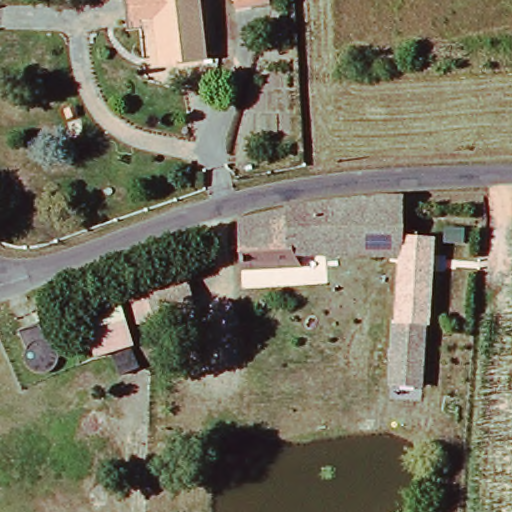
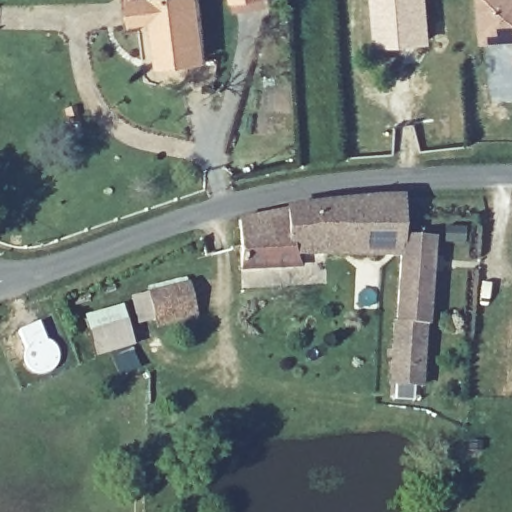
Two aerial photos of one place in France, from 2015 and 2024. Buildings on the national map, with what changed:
unchanged [(141,20),(139,0),(202,0),(207,60),(164,64),(161,19),(141,20)]
new [(427,39),(378,42),(375,0),(425,0),(427,39)]
new [(483,43),(480,0),(512,0),(512,41),(483,43)]
unchanged [(292,207),(407,194),(407,235),(407,258),(401,258),(244,257),(245,219),(292,207)]
unchanged [(401,326),(401,258),(407,258),(407,235),(435,237),(429,327),(401,326)]
unchanged [(188,277),(197,311),(138,327),(130,294),(188,277)]
unchanged [(126,320),(134,346),(140,366),(118,372),(112,353),(93,359),(86,333),(126,320)]
unchanged [(429,327),(426,390),(398,389),(401,326),(429,327)]

